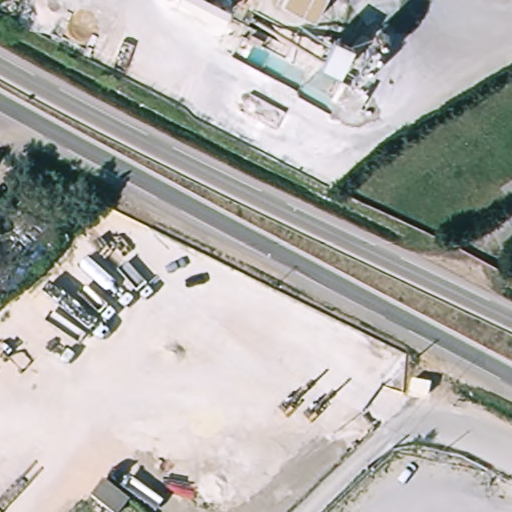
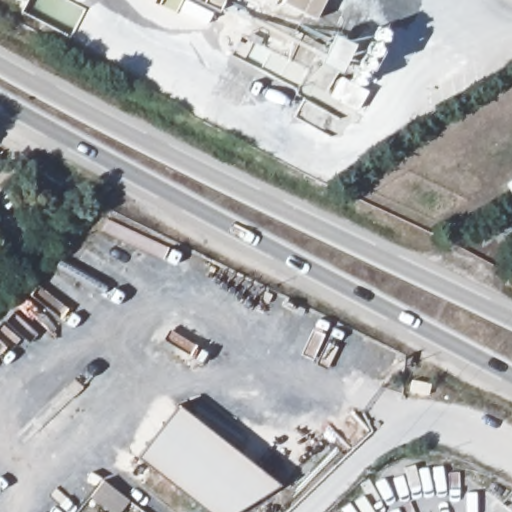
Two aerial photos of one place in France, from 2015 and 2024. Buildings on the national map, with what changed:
unchanged [(226,10),(220,14),(212,14),(206,11),(202,5),(202,0),(230,0),(230,5),(226,10)]
unchanged [(287,0),(327,0),(319,16),(287,0)]
unchanged [(339,72),(318,63),(331,34),(352,43),(339,72)]
new [(235,512),(208,512),(136,457),(177,406),(279,485),(235,512)]
unchanged [(101,481),(126,501),(118,512),(91,493),(101,481)]

